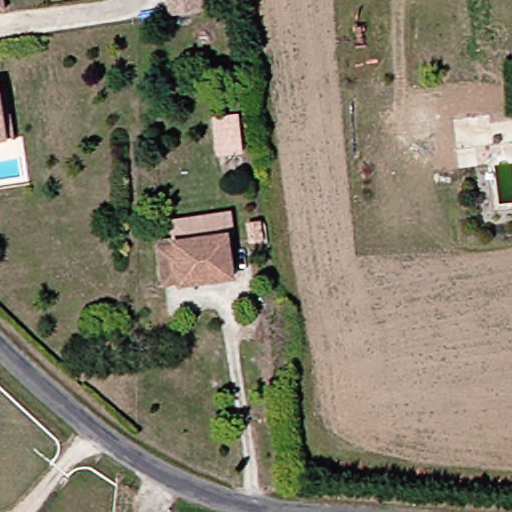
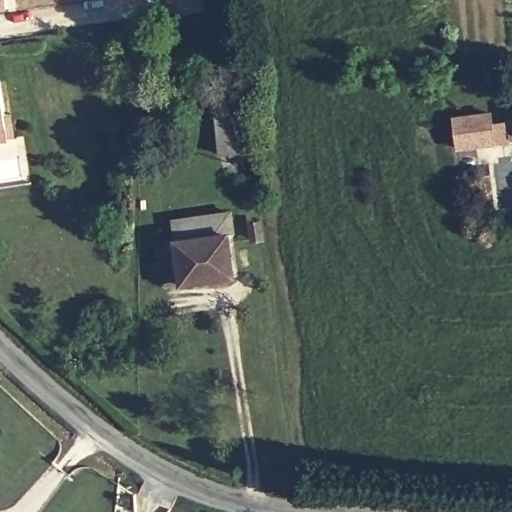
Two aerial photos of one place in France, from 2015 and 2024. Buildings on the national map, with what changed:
unchanged [(0,12),(0,0),(10,0),(12,10),(0,12)]
unchanged [(172,0),(203,0),(205,14),(175,18),(172,0)]
unchanged [(0,84),(7,83),(15,127),(17,140),(0,143),(0,84)]
new [(492,112),(494,127),(508,125),(511,147),(457,151),(452,117),(492,112)]
unchanged [(234,124),(237,151),(219,155),(216,126),(234,124)]
unchanged [(236,237),(241,279),(171,289),(167,250),(236,237)]

